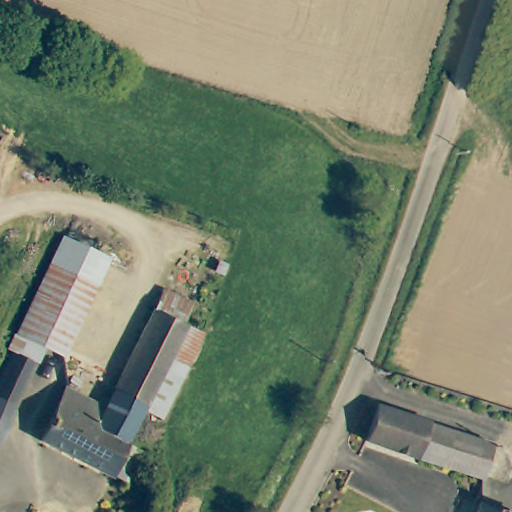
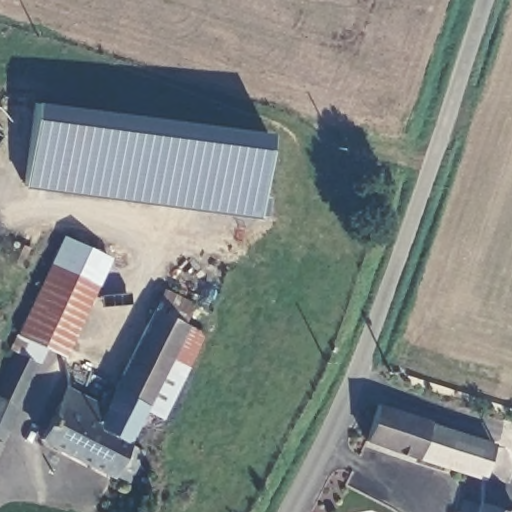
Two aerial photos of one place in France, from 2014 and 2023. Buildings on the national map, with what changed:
new [(35,104),(268,135),(260,197),(268,197),(266,215),(256,214),(255,217),(23,186),(35,104)]
unchanged [(13,350),(20,336),(71,240),(115,263),(64,358),(44,348),(36,362),(14,407),(0,400),(0,384),(16,352),(13,350)]
unchanged [(206,331),(190,363),(173,356),(130,441),(144,447),(134,469),(118,463),(115,468),(112,472),(40,437),(67,385),(104,403),(155,305),(165,286),(194,300),(185,320),(190,322),(206,331)]
unchanged [(366,440),(377,407),(397,414),(431,426),(420,458),(366,440)]
unchanged [(493,447),(484,480),(420,458),(431,426),(493,447)]
unchanged [(0,439),(0,428),(5,430),(0,439)]
unchanged [(474,512),(478,497),(512,506),(512,512),(474,512)]

